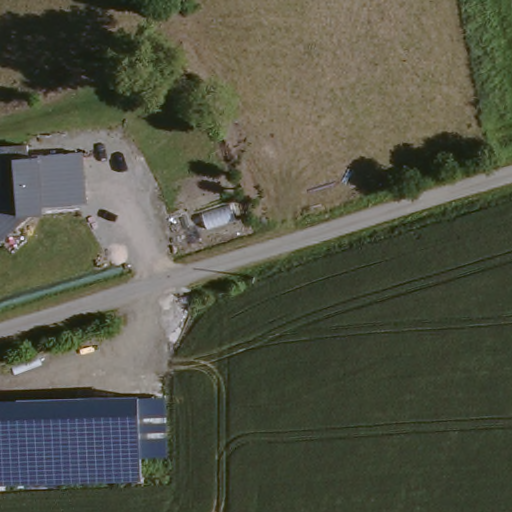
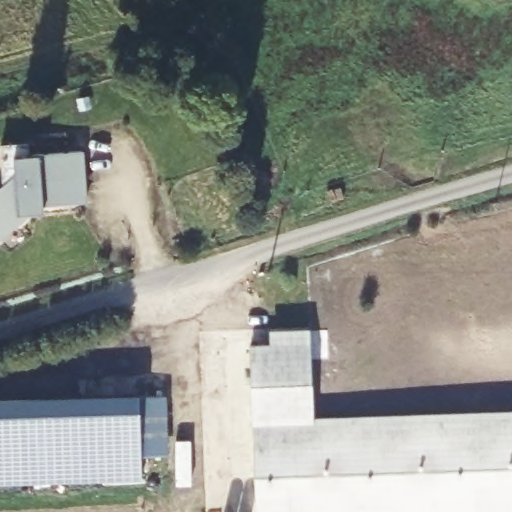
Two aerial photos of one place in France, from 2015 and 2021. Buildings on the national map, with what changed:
unchanged [(26,142),(29,147),(49,147),(49,153),(82,152),(84,200),(44,199),(44,207),(30,208),(0,239),(0,147),(26,142)]
new [(251,344),(271,344),(271,331),(309,329),(312,418),(512,410),(512,512),(256,512),(253,426),(251,344)]
unchanged [(0,484),(0,399),(139,395),(166,397),(169,457),(141,456),(142,479),(0,484)]

